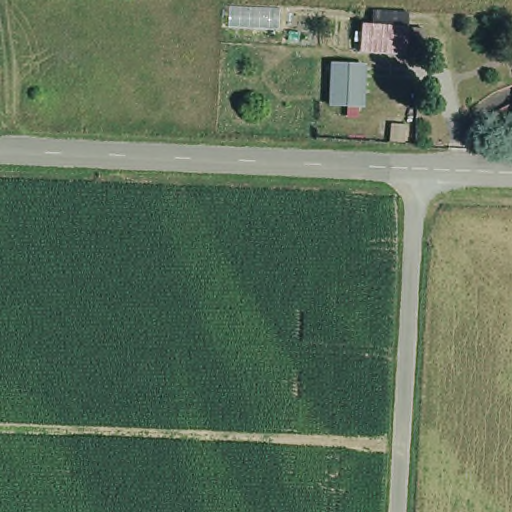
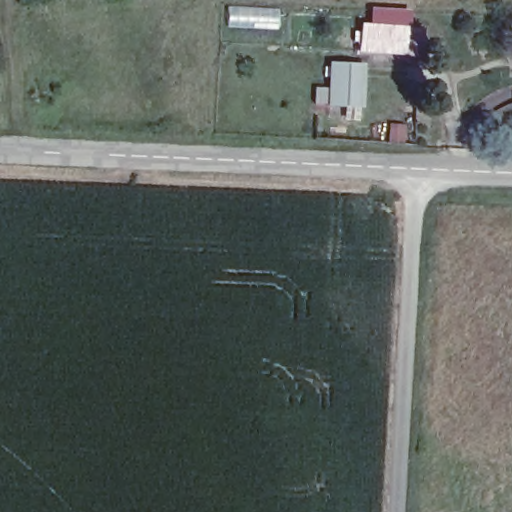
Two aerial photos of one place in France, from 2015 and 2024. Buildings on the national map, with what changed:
unchanged [(420,54),(363,54),(364,26),(424,27),(420,54)]
unchanged [(365,107),(329,106),(331,64),(366,64),(365,107)]

